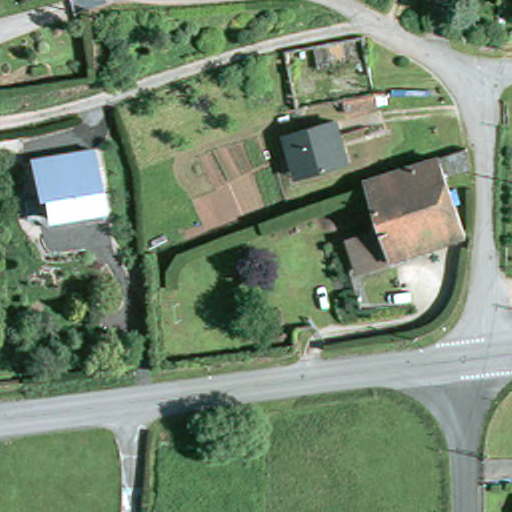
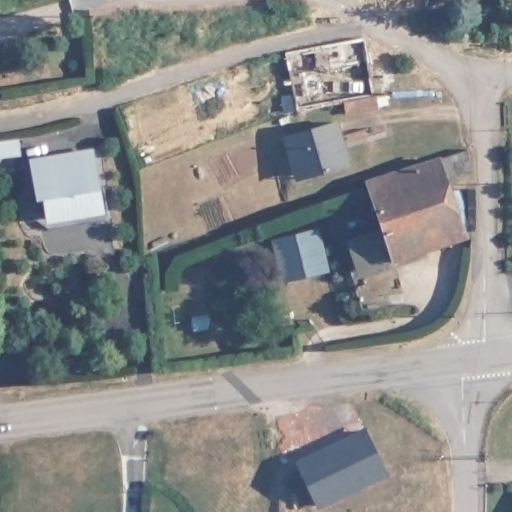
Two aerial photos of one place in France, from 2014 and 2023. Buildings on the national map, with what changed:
unchanged [(285,137),(335,122),(347,165),(297,180),(285,137)]
unchanged [(475,162),(472,169),(472,172),(446,181),(465,237),(391,262),(381,232),(366,184),(466,151),(475,162)]
unchanged [(33,170),(57,166),(58,166),(60,177),(94,172),(102,221),(62,227),(50,230),(39,221),(34,199),(38,199),(33,170)]
unchanged [(350,242),(381,232),(391,262),(360,272),(350,242)]
new [(365,432),(385,476),(320,506),(300,463),(365,432)]

